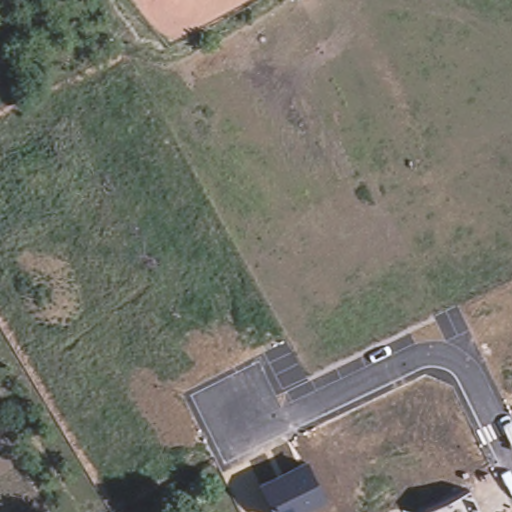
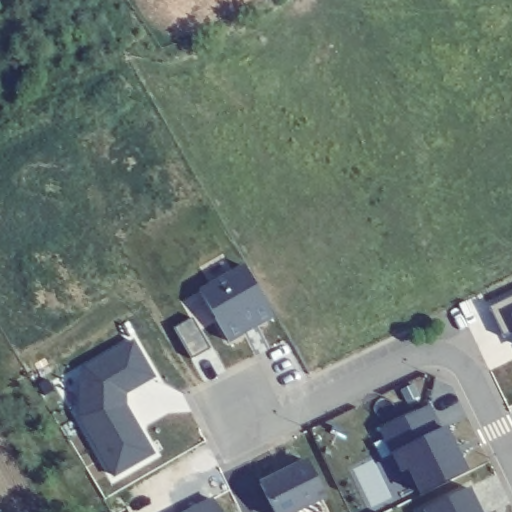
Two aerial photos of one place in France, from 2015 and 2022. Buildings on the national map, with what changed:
new [(245,263),(274,315),(230,342),(201,287),(245,263)]
new [(512,295),(512,332),(504,335),(489,305),(512,295)]
new [(78,418),(77,377),(85,365),(132,339),(155,378),(126,394),(127,408),(154,454),(112,478),(78,418)]
new [(410,470),(403,474),(381,431),(425,407),(440,433),(444,429),(464,472),(421,494),(410,470)]
unchanged [(308,458),(327,498),(299,512),(273,512),(260,484),(308,458)]
unchanged [(470,488),(481,512),(423,512),(423,511),(470,488)]
new [(222,512),(186,512),(215,498),(222,512)]

